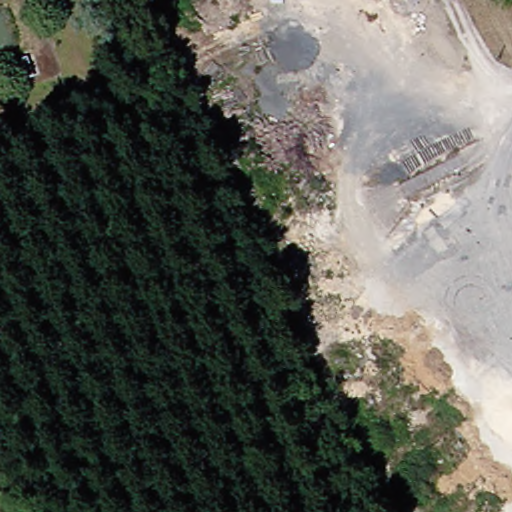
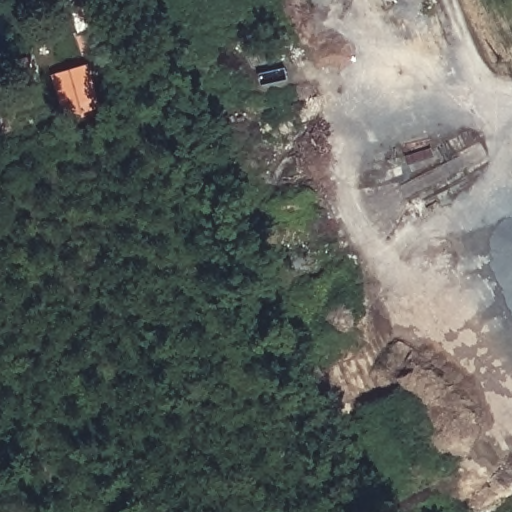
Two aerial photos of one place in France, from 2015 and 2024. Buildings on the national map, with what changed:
unchanged [(27,58),(33,78),(20,82),(13,62),(27,58)]
new [(55,76),(87,66),(99,107),(66,116),(55,76)]

